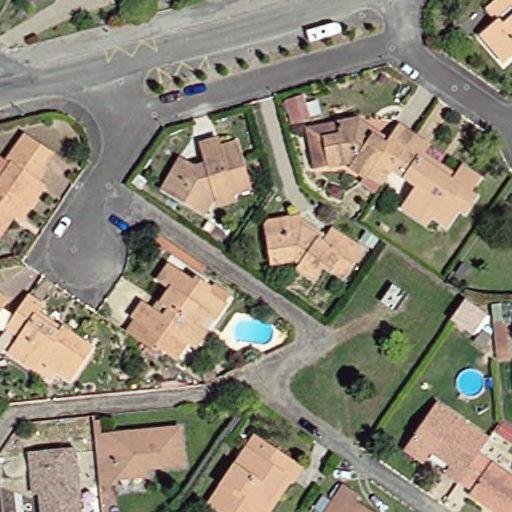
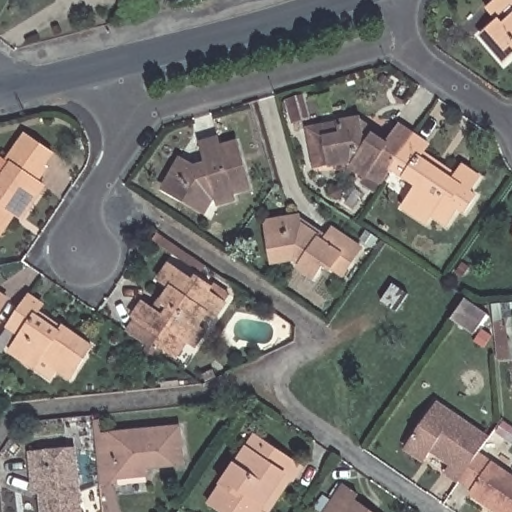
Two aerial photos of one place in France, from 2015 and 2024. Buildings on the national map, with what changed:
unchanged [(493,60),(472,35),(489,21),(478,8),(488,0),(512,0),(512,53),(507,47),(493,60)]
unchanged [(299,139),(314,137),(330,134),(328,121),(349,117),(349,120),(379,140),(390,125),(404,134),(380,167),(371,182),(357,172),(354,176),(341,167),(345,161),(320,166),(305,168),(299,139)]
unchanged [(5,147),(14,132),(42,152),(32,166),(36,169),(27,182),(34,186),(12,217),(5,212),(0,220),(0,154),(5,147)]
unchanged [(469,177),(459,191),(465,195),(455,211),(448,207),(436,224),(421,214),(415,222),(393,207),(407,186),(380,167),(404,134),(418,144),(412,152),(446,175),(453,165),(469,177)]
unchanged [(158,174),(167,160),(183,169),(197,165),(191,142),(207,138),(209,146),(225,141),(239,189),(222,194),(224,201),(209,206),(207,197),(202,199),(195,212),(167,196),(151,187),(158,174)]
unchanged [(348,197),(358,204),(351,212),(342,206),(348,197)]
unchanged [(313,264),(303,277),(289,267),(292,264),(285,259),(262,262),(255,221),(289,215),(290,222),(315,240),(323,228),(351,247),(341,262),(331,277),(322,270),(313,264)]
unchanged [(228,233),(223,241),(211,232),(216,225),(228,233)]
unchanged [(506,229),(512,228),(512,247),(508,247),(506,229)]
unchanged [(360,234),(370,241),(362,251),(353,244),(360,234)]
unchanged [(148,353),(125,338),(116,332),(125,317),(122,316),(132,302),(142,308),(159,285),(149,278),(158,265),(183,281),(186,277),(203,288),(206,285),(220,295),(215,303),(205,317),(198,312),(188,327),(195,332),(186,346),(178,341),(172,349),(158,340),(148,353)]
unchanged [(409,293),(398,311),(381,298),(392,282),(409,293)]
unchanged [(25,364),(24,365),(0,348),(0,344),(9,331),(0,325),(0,317),(19,289),(34,299),(31,305),(53,320),(83,341),(60,375),(46,366),(40,375),(25,364)]
unchanged [(2,294),(0,298),(0,292),(2,294)]
unchanged [(487,312),(472,333),(451,317),(465,297),(477,306),(487,312)]
unchanged [(512,363),(512,406),(508,363),(512,363)]
unchanged [(393,450),(396,446),(426,402),(479,438),(468,453),(450,480),(449,482),(435,472),(439,466),(420,452),(415,458),(412,462),(393,450)]
unchanged [(173,459),(167,460),(135,463),(136,470),(105,473),(105,477),(90,478),(85,430),(83,416),(89,415),(90,429),(170,421),(173,459)]
unchanged [(236,447),(245,436),(258,445),(291,467),(283,479),(281,477),(257,512),(214,512),(199,502),(236,447)]
unchanged [(71,512),(32,512),(30,492),(23,493),(21,471),(19,452),(65,447),(71,512)]
unchanged [(512,512),(488,512),(460,493),(463,489),(450,480),(468,453),(512,483),(512,512)]
unchanged [(333,480),(347,490),(343,494),(369,512),(316,512),(312,510),(333,480)]

